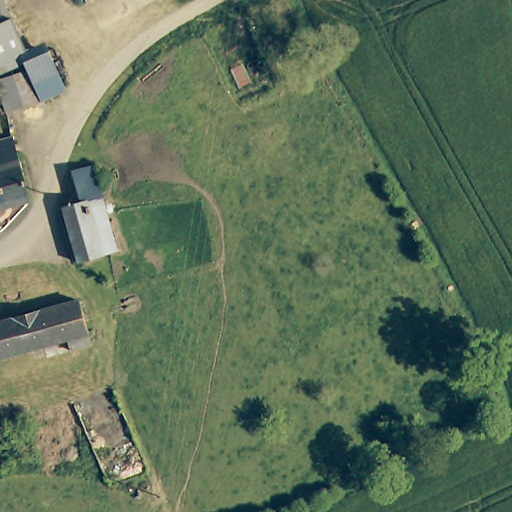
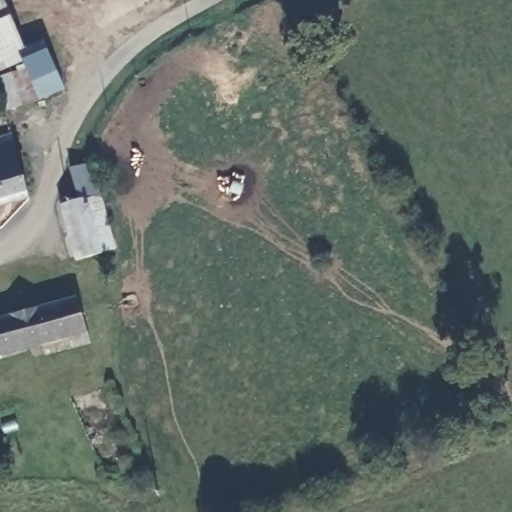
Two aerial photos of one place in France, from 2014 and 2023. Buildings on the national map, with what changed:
unchanged [(9,0),(9,1),(0,4),(0,0),(9,0)]
unchanged [(9,1),(30,55),(0,67),(0,4),(9,1)]
unchanged [(39,101),(6,109),(1,86),(0,83),(0,72),(32,65),(39,101)]
unchanged [(12,134),(30,181),(29,185),(26,192),(3,196),(0,197),(0,136),(12,134)]
unchanged [(110,250),(97,254),(71,262),(56,208),(74,202),(67,175),(69,171),(88,165),(110,250)]
unchanged [(75,298),(85,335),(87,344),(69,349),(65,338),(0,357),(0,319),(75,298)]

